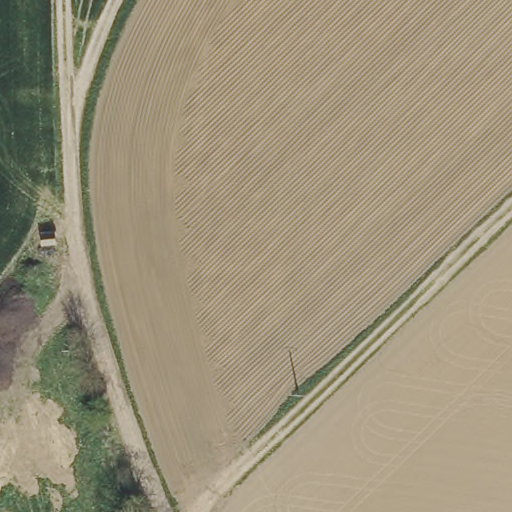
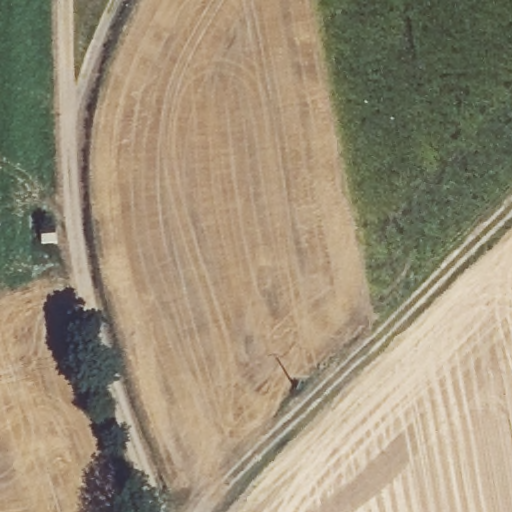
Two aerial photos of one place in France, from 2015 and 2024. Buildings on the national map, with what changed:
unchanged [(57,232),(56,244),(42,244),(42,232),(57,232)]

